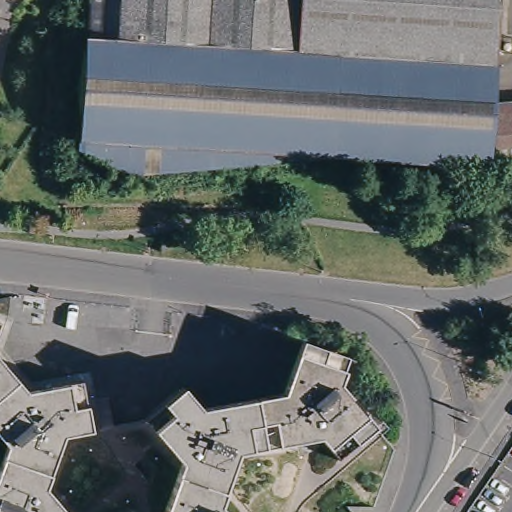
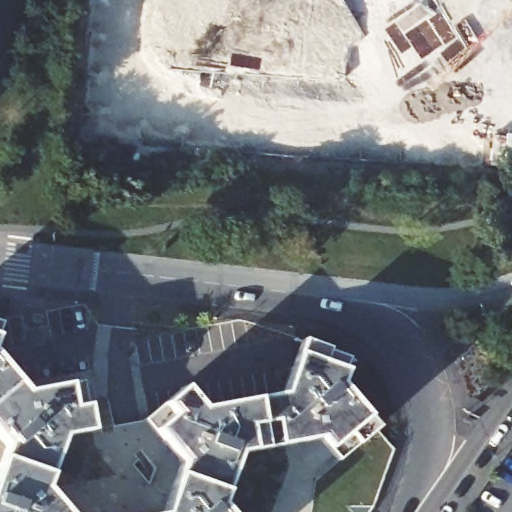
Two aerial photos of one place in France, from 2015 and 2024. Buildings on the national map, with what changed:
demolished [(185,44),(168,43),(118,40),(85,39),(88,0),(292,0),(290,49),(185,44)]
demolished [(292,0),(496,0),(492,60),(290,49),(292,0)]
demolished [(493,97),(512,96),(512,168),(495,169),(495,166),(380,163),(379,163),(325,159),(268,164),(235,166),(127,175),(77,150),(85,39),(118,40),(168,43),(185,44),(290,49),(492,60),(493,97)]
unchanged [(13,294),(7,320),(0,323),(0,296),(13,294)]
unchanged [(252,399),(280,394),(300,342),(347,359),(337,387),(373,429),(335,462),(315,439),(260,449),(252,399)]
unchanged [(15,383),(0,394),(0,364),(15,383)]
unchanged [(3,448),(0,444),(0,394),(15,383),(24,393),(80,383),(88,432),(62,437),(42,489),(63,512),(0,512),(0,458),(3,448)]
unchanged [(179,463),(140,421),(180,389),(198,410),(252,399),(260,449),(238,454),(219,509),(222,512),(164,512),(179,463)]

